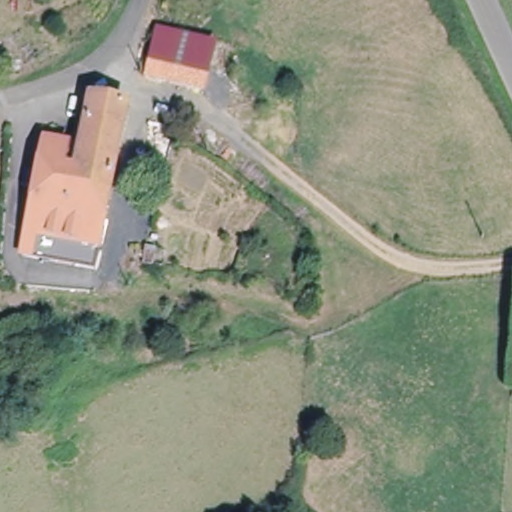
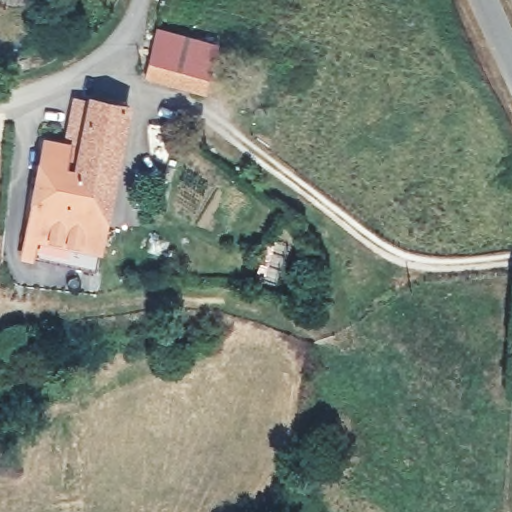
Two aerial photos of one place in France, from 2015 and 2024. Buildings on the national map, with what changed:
unchanged [(189,34),(172,79),(147,70),(166,24),(189,34)]
unchanged [(86,129),(95,79),(134,86),(111,194),(66,184),(72,155),(70,152),(73,127),(86,129)]
unchanged [(70,152),(72,155),(66,184),(111,194),(105,230),(31,218),(45,121),(73,127),(70,152)]
unchanged [(105,230),(100,250),(29,239),(31,218),(105,230)]

